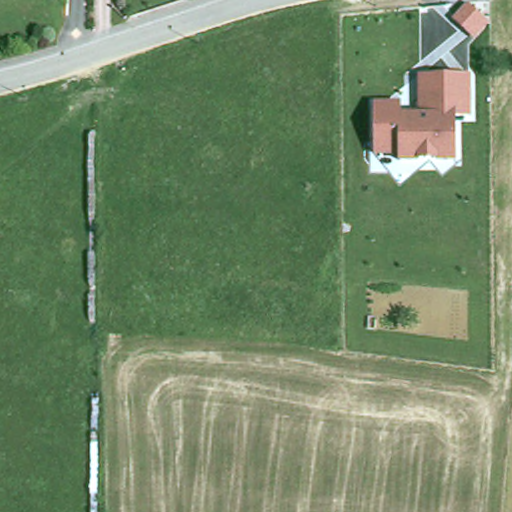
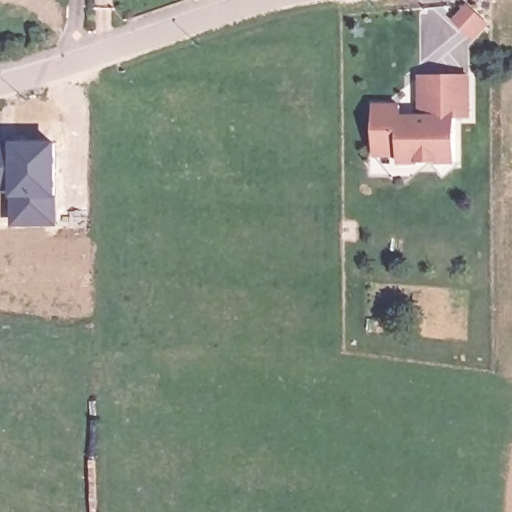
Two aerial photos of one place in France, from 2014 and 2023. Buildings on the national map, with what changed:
unchanged [(472,117),(455,119),(455,160),(395,161),(395,156),(375,155),(375,102),(401,104),(401,113),(420,113),(420,75),(471,76),(472,117)]
new [(15,223),(15,190),(0,190),(0,143),(57,143),(57,223),(15,223)]

